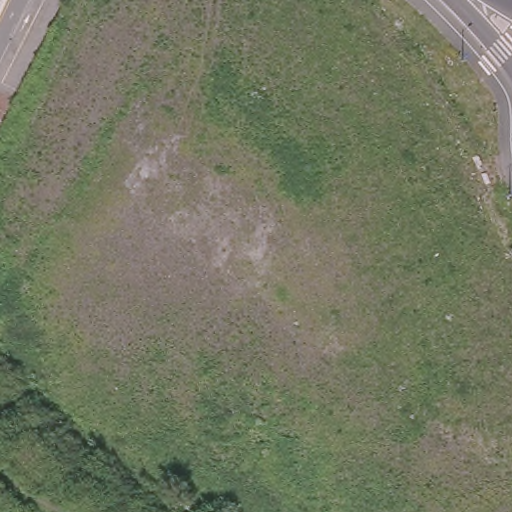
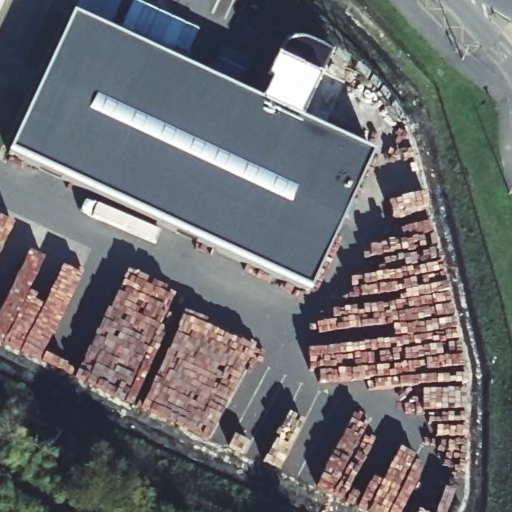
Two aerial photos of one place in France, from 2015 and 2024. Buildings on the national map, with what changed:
new [(0,0),(15,0),(0,32),(0,0)]
new [(73,20),(257,105),(277,61),(285,64),(291,50),(287,48),(292,38),(330,55),(299,124),(370,156),(308,291),(11,155),(42,88),(73,20)]

